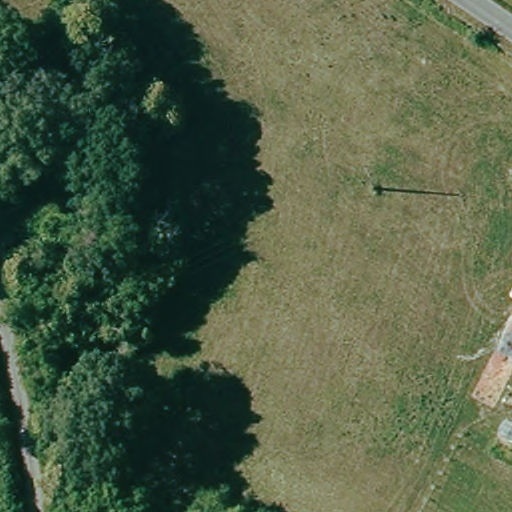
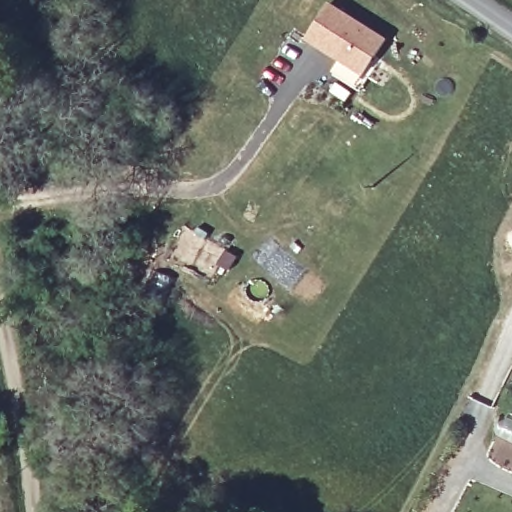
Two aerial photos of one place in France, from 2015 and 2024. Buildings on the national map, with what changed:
new [(325,4),(382,39),(360,74),(303,38),(325,4)]

